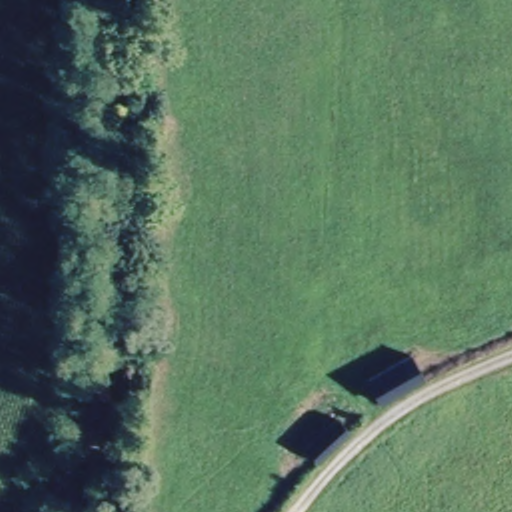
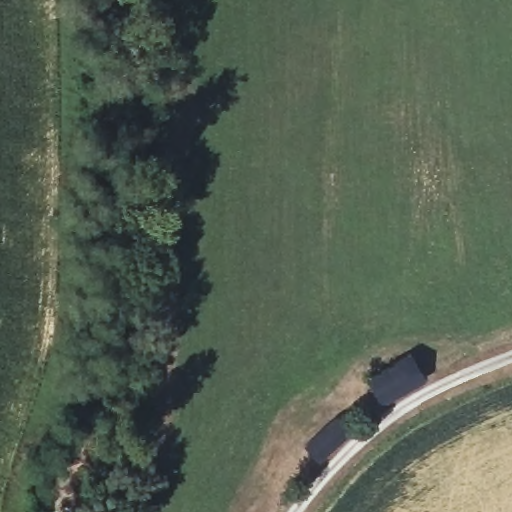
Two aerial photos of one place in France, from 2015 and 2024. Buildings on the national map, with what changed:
unchanged [(409,354),(424,381),(378,406),(364,382),(409,354)]
unchanged [(332,416),(351,434),(324,464),(306,447),(332,416)]

